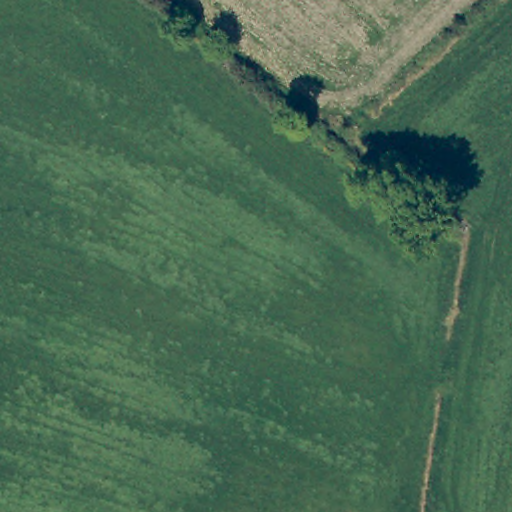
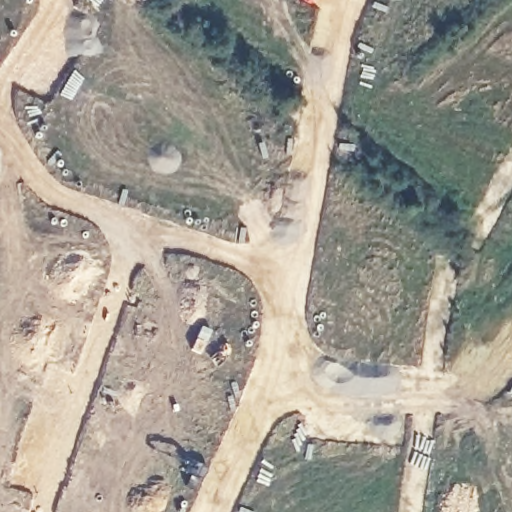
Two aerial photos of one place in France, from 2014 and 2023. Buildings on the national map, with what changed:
[]

